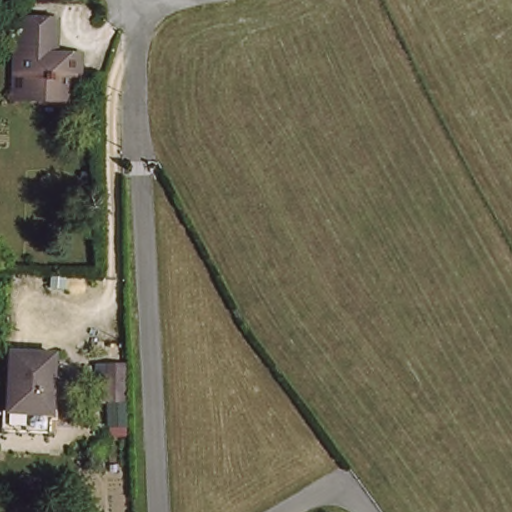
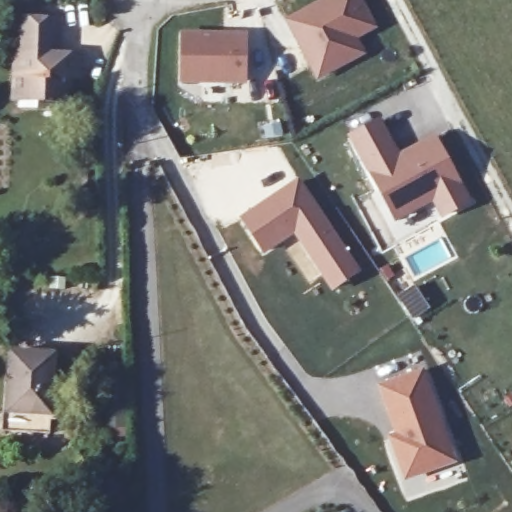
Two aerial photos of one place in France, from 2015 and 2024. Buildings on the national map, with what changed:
new [(357,39),(365,55),(315,79),(283,20),(320,0),(362,0),(376,28),(357,39)]
unchanged [(22,55),(22,20),(58,21),(58,55),(82,56),(82,74),(68,74),(68,98),(13,98),(14,70),(15,55),(22,55)]
new [(178,33),(245,33),(245,83),(178,84),(178,33)]
new [(393,223),(345,136),(380,117),(398,152),(434,134),(471,203),(440,218),(431,202),(393,223)]
new [(298,176),(362,271),(331,291),(293,236),(262,255),(236,217),(298,176)]
unchanged [(55,357),(55,418),(12,418),(13,356),(55,357)]
unchanged [(120,408),(93,408),(95,366),(121,368),(120,408)]
new [(387,435),(394,433),(377,384),(423,368),(456,462),(404,480),(387,435)]

